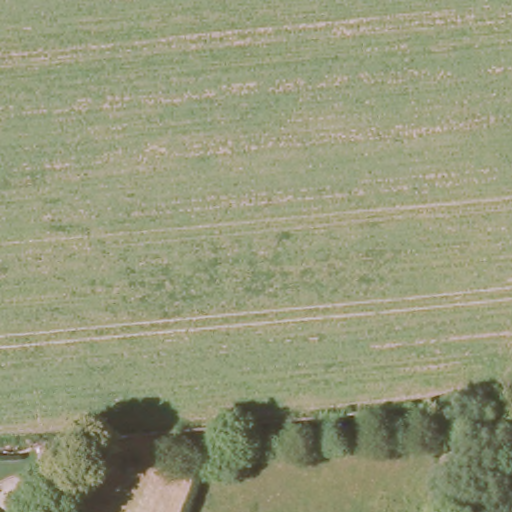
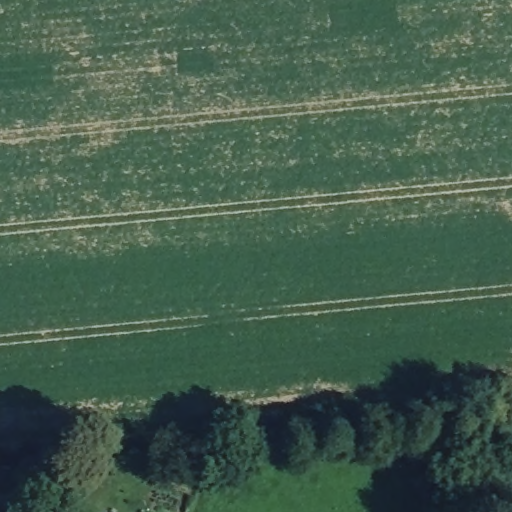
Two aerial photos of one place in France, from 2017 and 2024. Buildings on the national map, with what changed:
unchanged [(50,446),(60,445),(70,444),(71,453),(61,455),(51,456),(50,446)]

